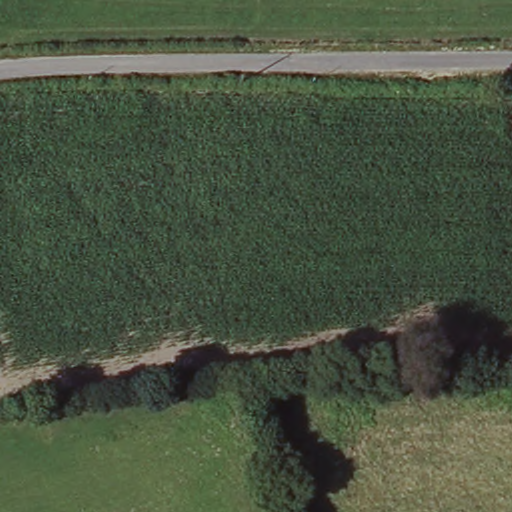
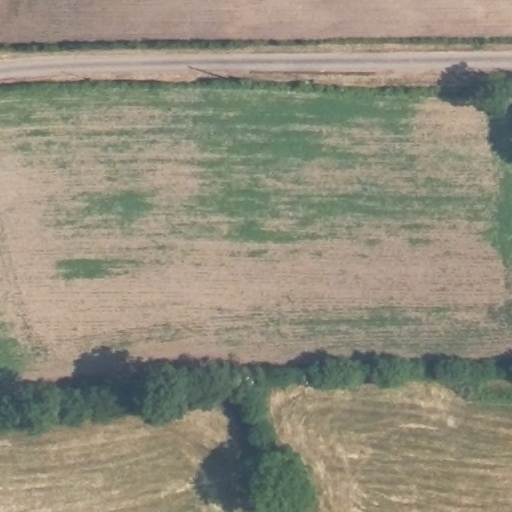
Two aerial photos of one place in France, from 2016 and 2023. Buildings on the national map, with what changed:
[]

